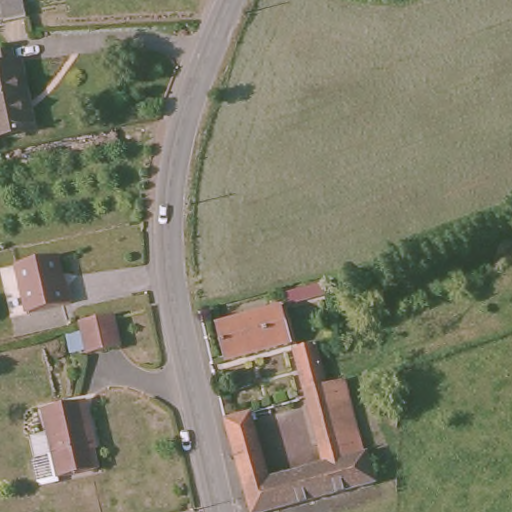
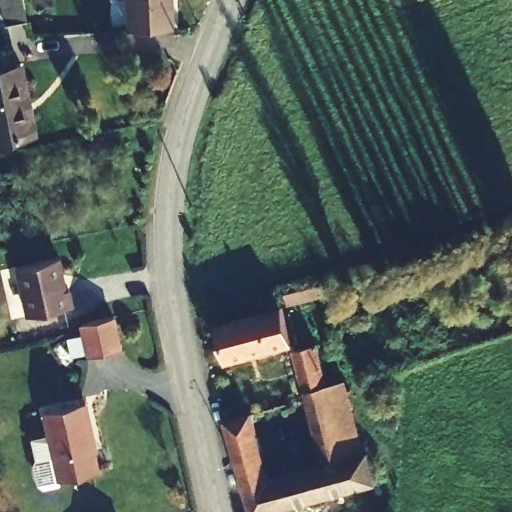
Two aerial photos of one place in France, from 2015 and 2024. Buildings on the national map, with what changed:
unchanged [(0,12),(0,0),(25,0),(26,7),(0,12)]
unchanged [(170,26),(126,29),(125,0),(169,0),(170,26)]
unchanged [(0,145),(0,54),(16,50),(21,65),(27,65),(43,136),(0,145)]
unchanged [(56,278),(62,276),(66,298),(14,309),(5,256),(51,247),(56,278)]
unchanged [(233,370),(222,333),(285,314),(297,349),(233,370)]
unchanged [(115,316),(120,348),(81,355),(77,324),(115,316)]
unchanged [(374,455),(384,486),(311,509),(302,512),(253,512),(230,428),(255,421),(275,483),(330,467),(297,355),(320,349),(333,389),(353,460),(374,455)]
unchanged [(374,455),(353,460),(333,389),(353,383),(374,455)]
unchanged [(49,442),(43,409),(89,401),(103,480),(57,489),(57,492),(37,494),(33,467),(36,466),(33,444),(49,442)]

